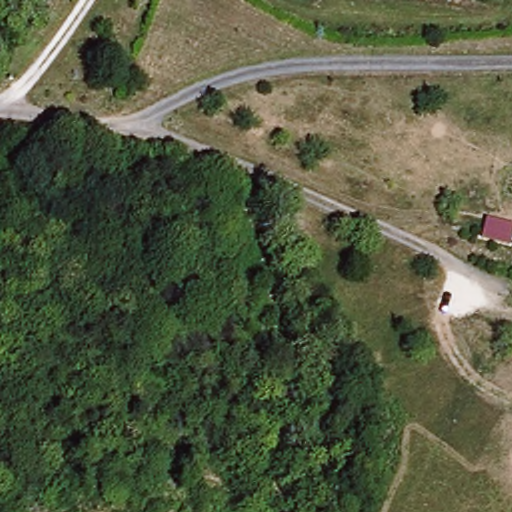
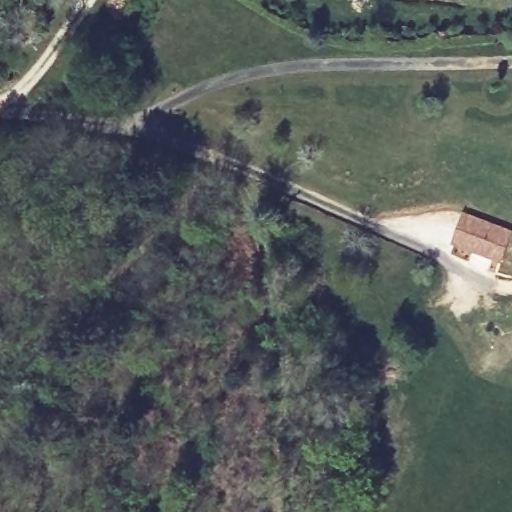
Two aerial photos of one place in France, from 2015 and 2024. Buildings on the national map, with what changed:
new [(462,211),(512,229),(512,239),(502,262),(475,252),(470,264),(448,254),(462,211)]

